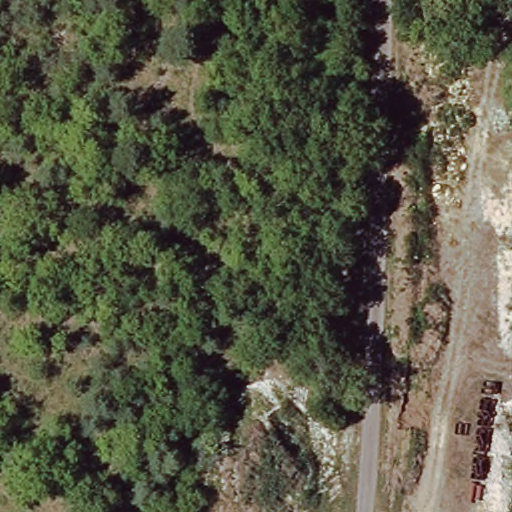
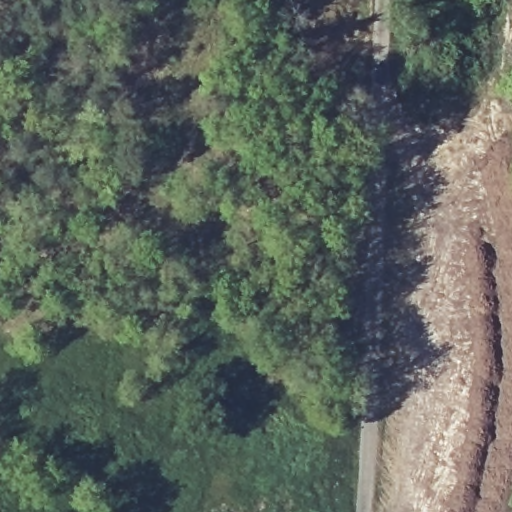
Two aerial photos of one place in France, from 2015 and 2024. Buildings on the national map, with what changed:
[]

